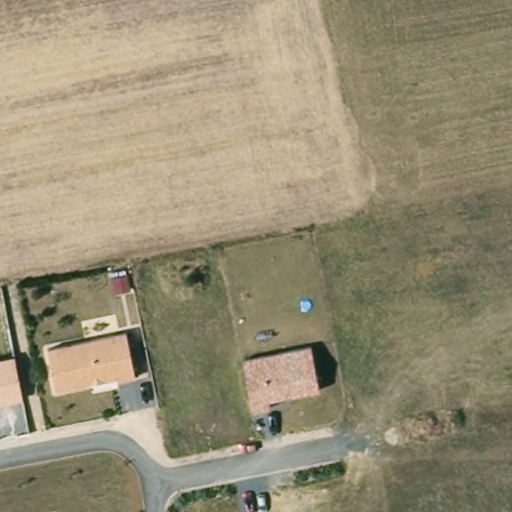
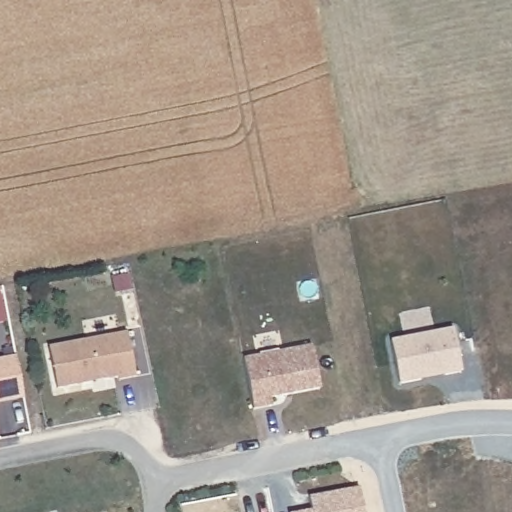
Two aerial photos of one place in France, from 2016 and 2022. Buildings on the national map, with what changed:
new [(391,340),(453,328),(462,374),(399,385),(391,340)]
unchanged [(48,348),(126,334),(134,376),(56,389),(48,348)]
unchanged [(244,359),(313,347),(320,389),(269,400),(270,408),(252,411),(244,359)]

